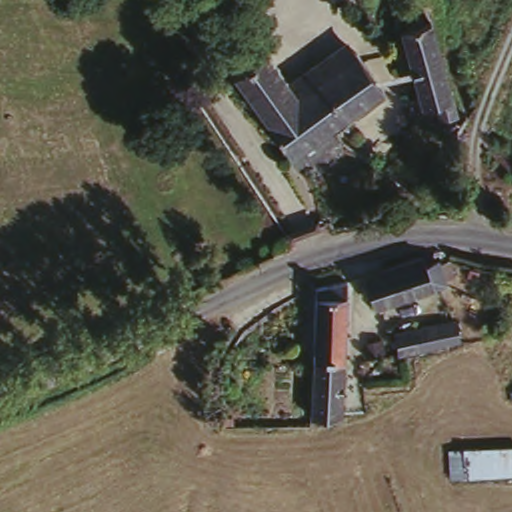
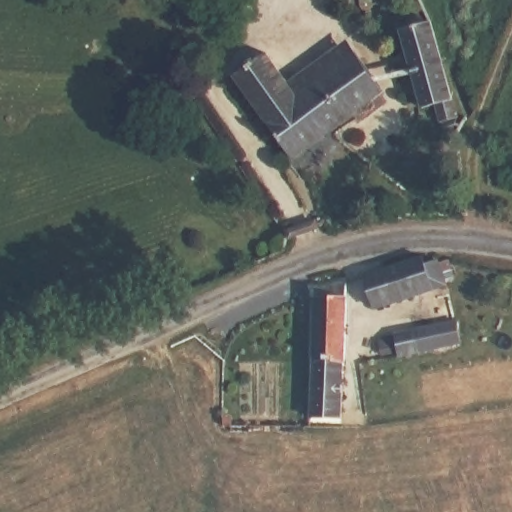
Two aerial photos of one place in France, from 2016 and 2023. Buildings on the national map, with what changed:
unchanged [(432,20),(454,99),(421,109),(400,30),(432,20)]
unchanged [(267,51),(290,82),(349,38),(385,90),(294,160),(235,76),(267,51)]
unchanged [(451,281),(441,284),(443,289),(372,313),(361,280),(380,273),(378,266),(395,261),(397,268),(418,261),(420,269),(433,265),(435,269),(445,266),(451,281)]
unchanged [(346,282),(342,419),(312,418),(316,288),(346,282)]
unchanged [(457,321),(461,343),(399,356),(395,334),(457,321)]
demolished [(512,444),(512,478),(450,481),(447,445),(464,446),(512,444)]

